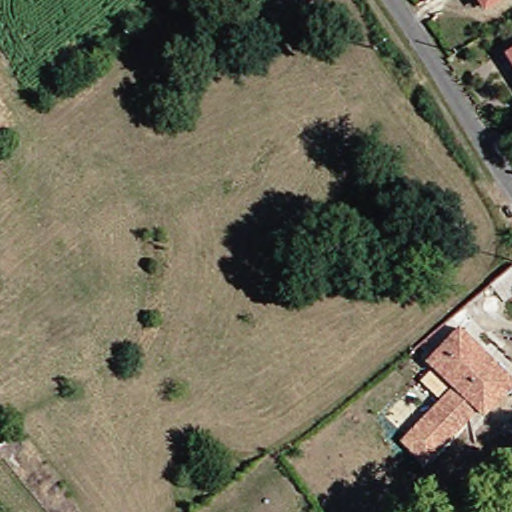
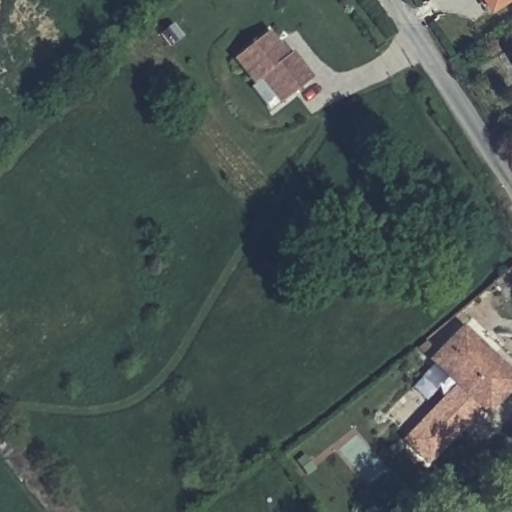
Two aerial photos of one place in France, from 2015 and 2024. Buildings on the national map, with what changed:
unchanged [(483,0),(502,0),(488,9),(483,0)]
new [(282,103),(262,79),(255,84),(235,59),(267,34),(277,46),(282,42),(291,54),(311,80),(282,103)]
unchanged [(511,55),(512,54),(512,58),(511,55)]
unchanged [(505,302),(491,285),(512,268),(512,297),(505,302)]
unchanged [(478,403),(426,457),(405,437),(457,382),(430,357),(457,328),(512,381),(512,383),(490,405),(485,410),(478,403)]

